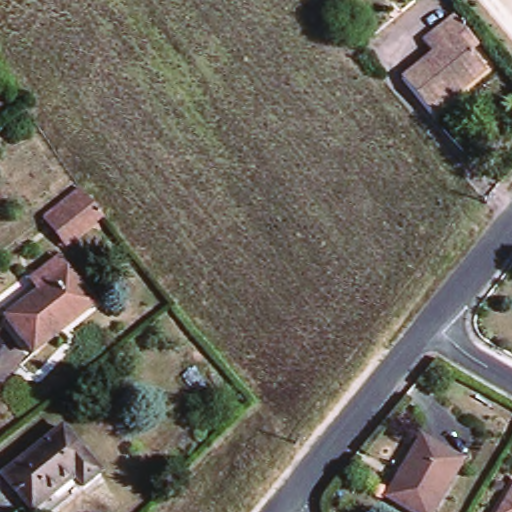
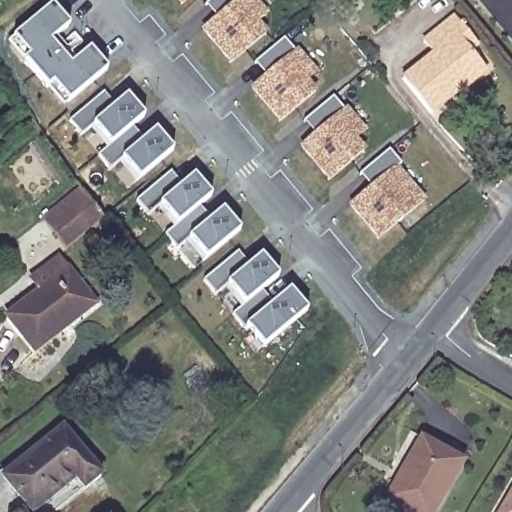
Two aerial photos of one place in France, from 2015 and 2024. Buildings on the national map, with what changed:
new [(187,0),(180,6),(174,0),(187,0)]
new [(214,18),(204,5),(210,0),(257,0),(268,15),(258,22),(267,34),(231,64),(200,30),(214,18)]
new [(54,80),(47,85),(27,59),(31,54),(15,35),(53,4),(69,23),(50,39),(72,64),(90,49),(106,68),(69,99),(54,80)]
unchanged [(465,83),(469,89),(440,112),(412,77),(443,52),(432,39),(462,14),(477,30),(486,40),(477,48),(490,64),(465,83)]
new [(250,89),(263,75),(255,64),(284,39),(294,51),(297,49),(318,74),(307,81),(317,93),(278,124),(250,89)]
new [(72,119),(105,92),(117,104),(127,96),(144,116),(133,123),(146,138),(157,130),(172,150),(140,177),(125,156),(111,168),(100,155),(113,144),(96,122),(82,133),(72,119)]
new [(300,148),(315,134),(303,122),(332,97),(343,110),(346,108),(367,132),(356,140),(365,151),(328,182),(300,148)]
new [(378,241),(347,207),(370,187),(359,175),(389,150),(400,163),(396,167),(423,201),(378,241)]
new [(137,200),(171,172),(184,185),(195,176),(211,196),(201,204),(212,220),(223,210),(240,230),(207,257),(192,238),(178,248),(166,233),(179,223),(163,203),(149,213),(137,200)]
unchanged [(76,247),(55,221),(91,191),(111,218),(76,247)]
new [(203,280),(238,253),(251,266),(262,256),(277,276),(262,289),(275,304),(291,291),(307,311),(263,346),(248,325),(243,328),(232,315),(246,304),(228,284),(215,294),(203,280)]
unchanged [(15,315),(77,263),(109,301),(77,330),(73,327),(45,351),(15,315)]
unchanged [(19,474),(74,427),(114,469),(94,486),(85,476),(50,507),(19,474)]
unchanged [(396,494),(426,435),(468,457),(441,512),(430,512),(396,494)]
unchanged [(512,507),(512,512),(510,512),(512,507)]

